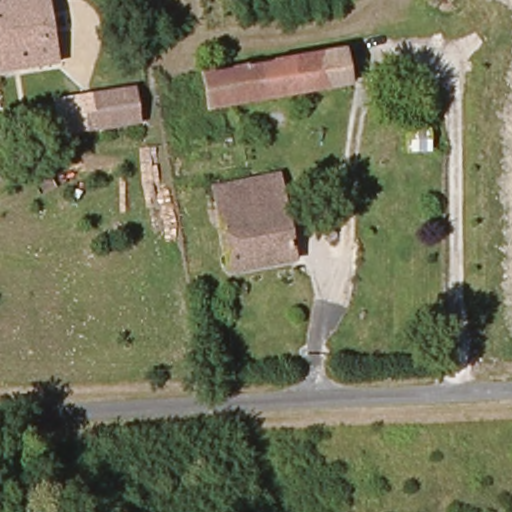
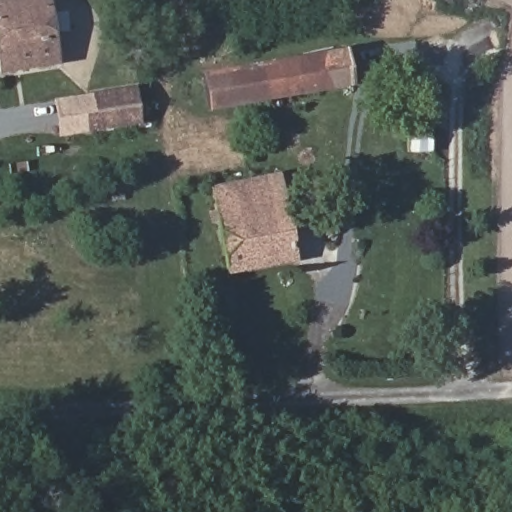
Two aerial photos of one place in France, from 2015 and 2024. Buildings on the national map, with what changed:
unchanged [(3,71),(0,38),(0,0),(52,0),(60,66),(5,77),(3,71)]
unchanged [(351,83),(212,110),(207,76),(345,52),(351,83)]
unchanged [(101,135),(95,102),(140,95),(146,126),(101,135)]
unchanged [(433,154),(412,154),(410,131),(432,131),(433,154)]
unchanged [(232,277),(220,191),(282,177),(296,263),(232,277)]

